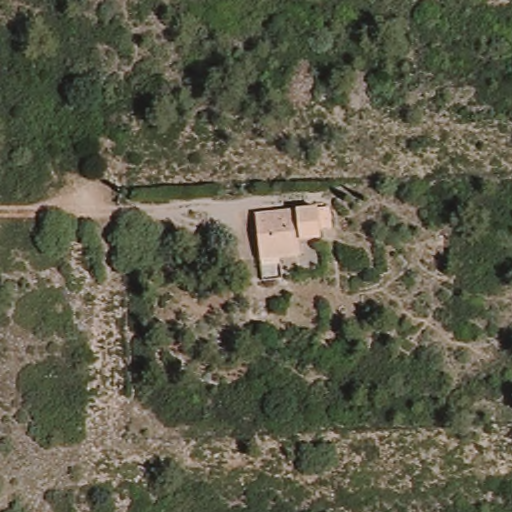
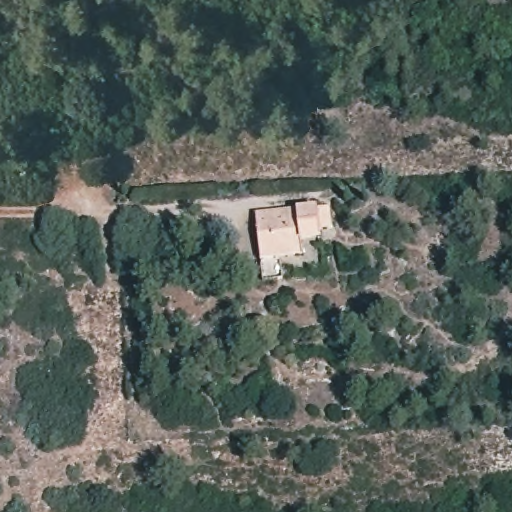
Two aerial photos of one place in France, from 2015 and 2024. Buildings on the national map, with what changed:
unchanged [(312,232),(316,253),(291,255),(294,280),(267,283),(260,215),(320,208),(323,230),(312,232)]

